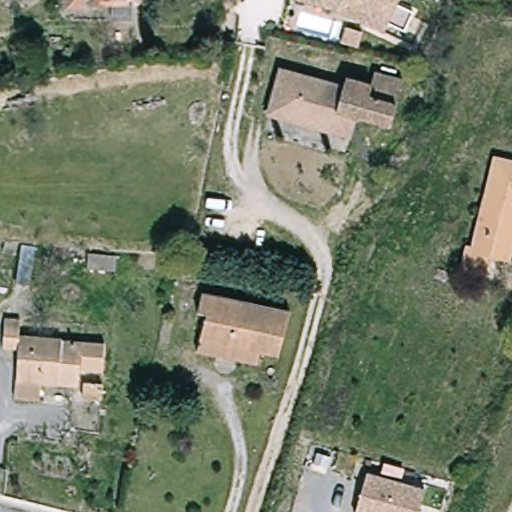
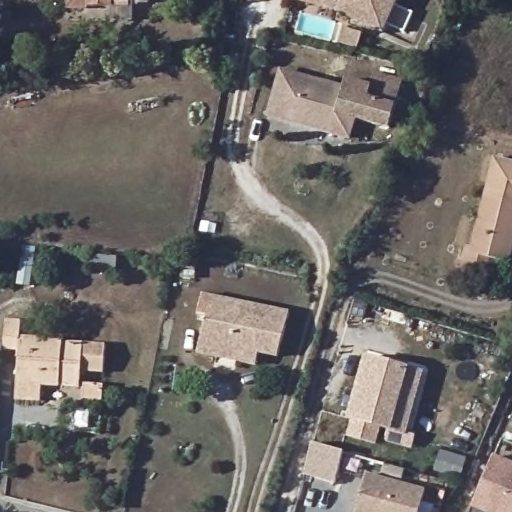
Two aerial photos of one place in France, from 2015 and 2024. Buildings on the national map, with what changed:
unchanged [(109,24),(108,10),(72,11),(71,4),(67,0),(147,0),(147,3),(131,3),(132,23),(109,24)]
unchanged [(399,0),(393,13),(410,21),(400,40),(383,31),(379,39),(335,16),(279,0),(399,0)]
unchanged [(268,114),(282,70),(344,89),(348,79),(377,89),(380,76),(404,84),(398,105),(390,128),(368,120),(357,118),(350,139),(330,133),(293,121),(268,114)]
unchanged [(495,157),(512,162),(512,239),(505,263),(469,252),(495,157)]
unchanged [(205,346),(210,323),(202,321),(207,300),(292,319),(282,363),(205,346)]
unchanged [(19,356),(4,354),(7,322),(23,324),(21,339),(105,348),(102,374),(80,372),(79,386),(78,388),(41,384),(40,399),(14,397),(17,374),(19,356)]
new [(409,367),(424,372),(408,433),(417,436),(413,451),(385,444),(388,432),(380,430),(377,445),(348,438),(352,422),(347,421),(365,356),(409,367)]
unchanged [(99,401),(79,399),(81,386),(81,384),(101,387),(101,390),(99,401)]
new [(343,452),(335,484),(304,475),(313,444),(343,452)]
new [(512,462),(512,512),(480,512),(470,508),(492,454),(512,462)]
unchanged [(425,493),(420,512),(357,512),(368,476),(425,493)]

